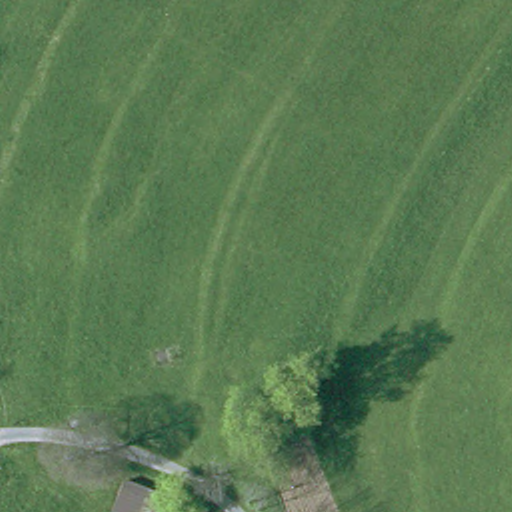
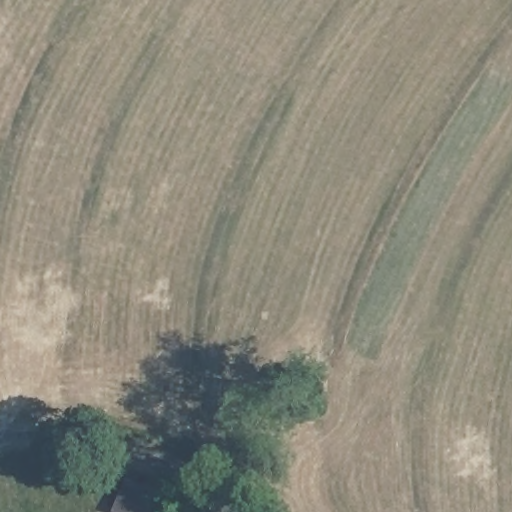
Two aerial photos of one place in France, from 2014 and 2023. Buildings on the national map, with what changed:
unchanged [(148,491),(143,512),(114,512),(122,483),(148,491)]

